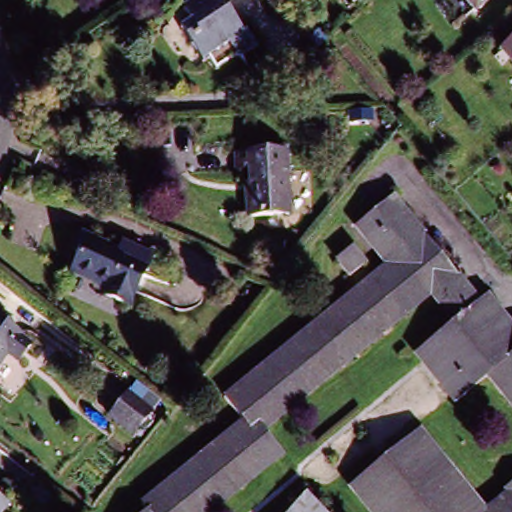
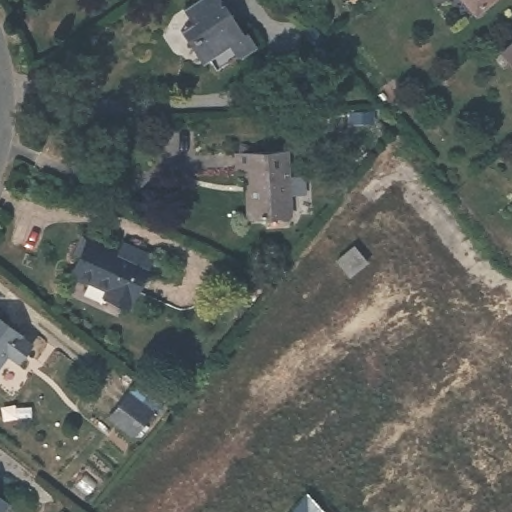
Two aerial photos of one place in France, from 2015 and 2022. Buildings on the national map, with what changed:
unchanged [(194,33),(184,21),(213,0),(236,0),(225,7),(251,44),(254,43),(265,58),(246,69),(239,68),(217,82),(209,71),(203,76),(193,62),(191,59),(180,44),(188,39),(194,33)]
unchanged [(457,0),(493,0),(471,17),(457,0)]
unchanged [(512,52),(512,69),(504,58),(512,52)]
unchanged [(289,154),(294,220),(254,223),(249,175),(243,175),(243,159),(289,154)]
demolished [(456,403),(417,356),(455,321),(426,289),(264,430),(282,452),(214,512),(143,512),(139,509),(239,419),(223,399),(385,263),(352,222),(390,191),(479,299),(489,292),(512,321),(512,405),(488,376),(456,403)]
unchanged [(103,289),(109,275),(94,267),(90,274),(73,266),(80,251),(74,248),(83,229),(114,244),(120,234),(131,238),(153,248),(138,280),(129,300),(103,289)]
demolished [(368,254),(353,269),(337,251),(352,238),(368,254)]
unchanged [(34,338),(22,356),(11,348),(0,364),(0,312),(24,327),(22,332),(34,338)]
unchanged [(111,423),(130,399),(138,389),(162,407),(154,417),(135,441),(111,423)]
demolished [(354,492),(419,435),(485,512),(370,512),(354,492)]
unchanged [(304,482),(330,512),(278,512),(304,482)]
demolished [(512,490),(512,496),(509,492),(512,490)]
unchanged [(4,498),(0,504),(0,495),(4,498)]
demolished [(512,499),(512,512),(495,512),(512,499)]

